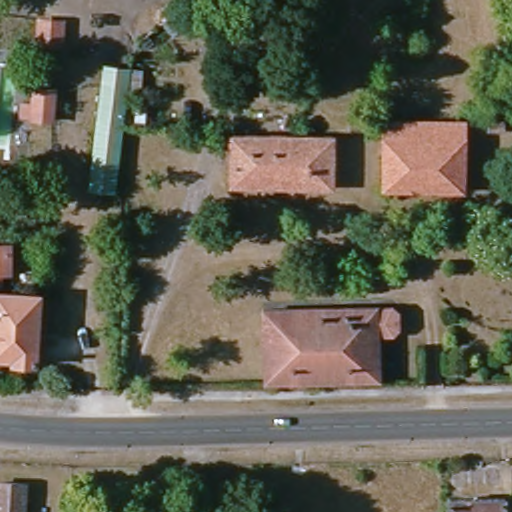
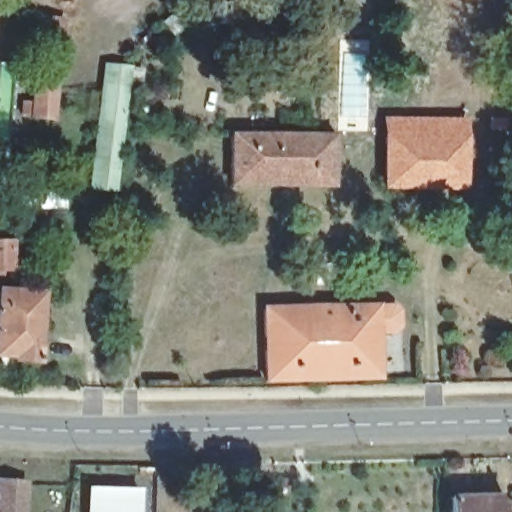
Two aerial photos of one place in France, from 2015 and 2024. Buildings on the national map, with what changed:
unchanged [(67,17),(64,50),(34,47),(36,13),(67,17)]
unchanged [(101,125),(107,73),(134,76),(127,126),(101,125)]
unchanged [(57,96),(55,125),(35,125),(36,95),(57,96)]
unchanged [(466,122),(466,140),(386,140),(386,123),(466,122)]
unchanged [(127,126),(120,181),(95,179),(101,125),(127,126)]
unchanged [(334,135),(335,185),(233,186),(231,134),(334,135)]
unchanged [(466,190),(387,189),(386,140),(466,140),(466,190)]
unchanged [(0,284),(0,242),(12,242),(12,268),(2,268),(1,285),(0,284)]
unchanged [(41,293),(37,361),(0,359),(0,291),(41,293)]
unchanged [(396,305),(401,312),(400,325),(397,330),(393,332),(388,332),(379,332),(381,376),(270,379),(268,308),(396,305)]
unchanged [(30,481),(28,512),(0,512),(0,479),(30,481)]
new [(141,488),(141,512),(86,512),(86,488),(141,488)]
unchanged [(505,512),(450,512),(450,497),(504,495),(505,512)]

